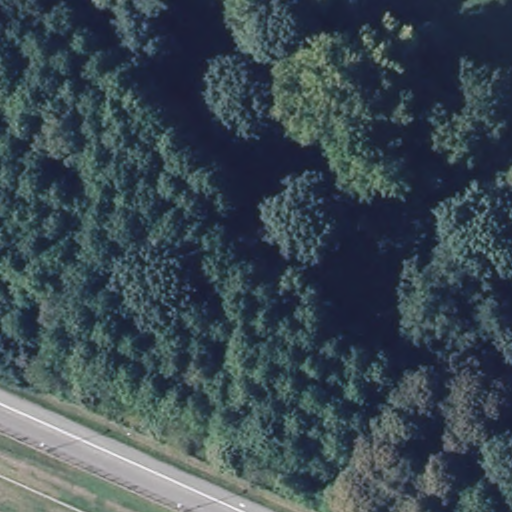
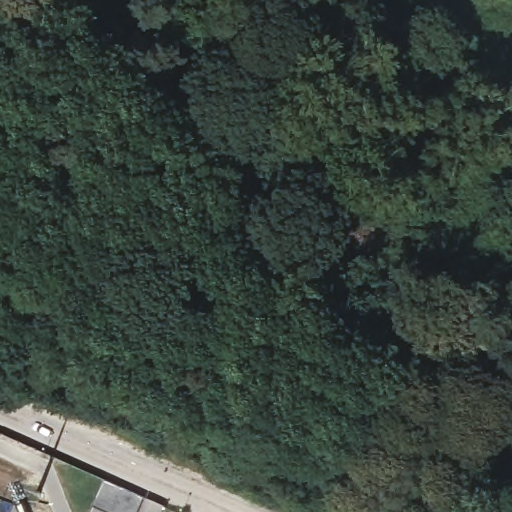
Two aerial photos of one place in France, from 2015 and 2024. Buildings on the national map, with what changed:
new [(144,497),(137,512),(108,512),(93,505),(104,481),(144,497)]

